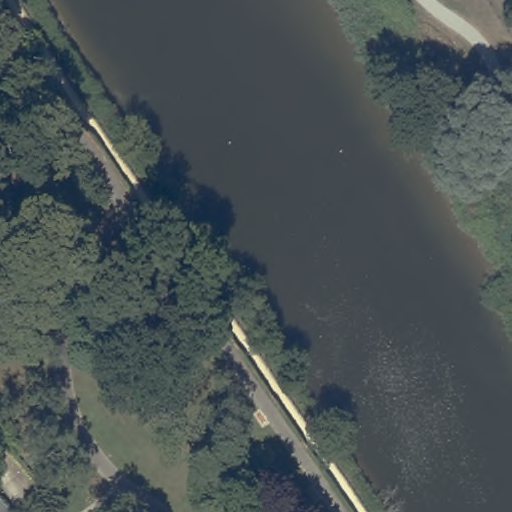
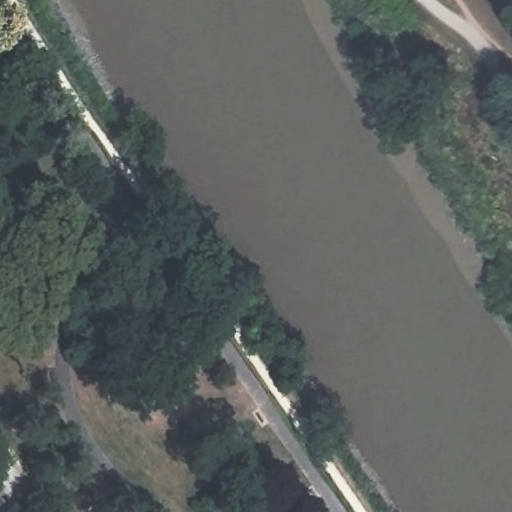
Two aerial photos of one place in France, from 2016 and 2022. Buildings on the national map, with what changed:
unchanged [(0,497),(9,507),(3,512),(0,512),(0,497)]

